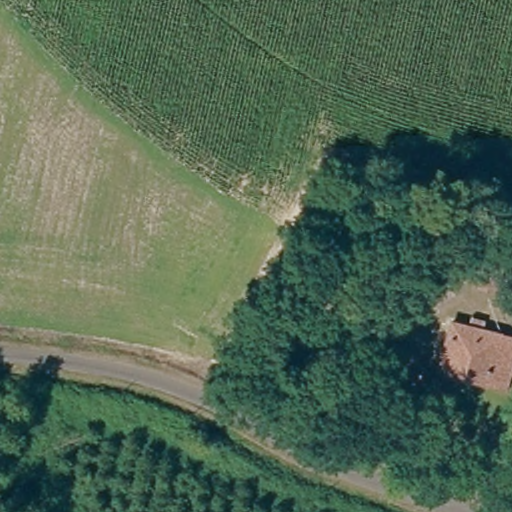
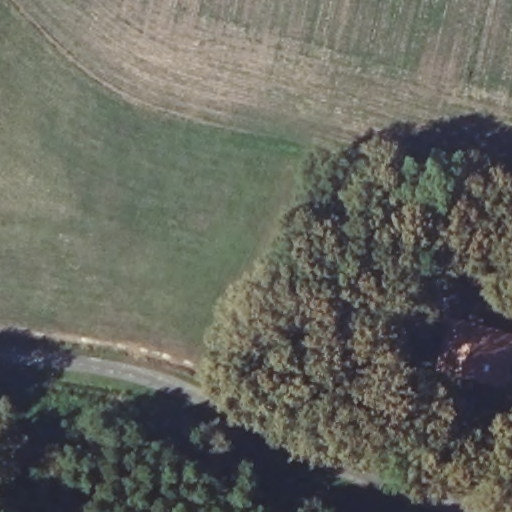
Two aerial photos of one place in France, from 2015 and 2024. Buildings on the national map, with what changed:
unchanged [(499,236),(512,240),(512,270),(490,262),(499,236)]
unchanged [(437,367),(456,315),(512,334),(512,363),(502,390),(437,367)]

